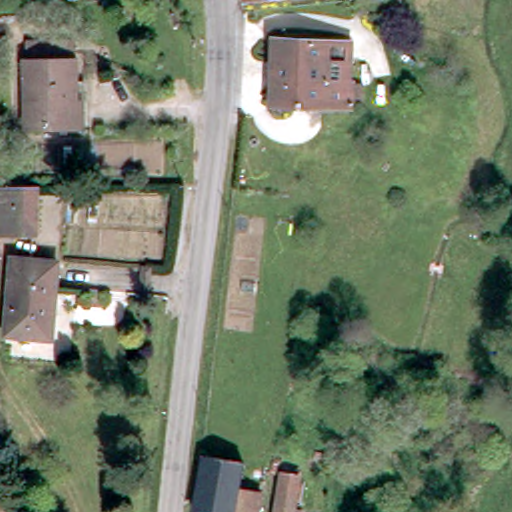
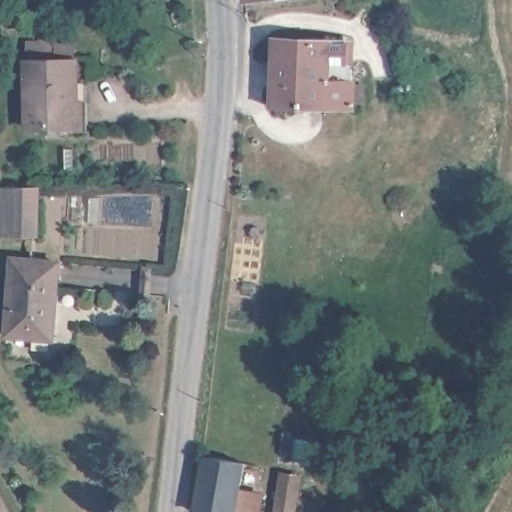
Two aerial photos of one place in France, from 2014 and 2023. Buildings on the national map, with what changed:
unchanged [(249,0),(244,1),(244,0),(249,0)]
unchanged [(350,43),(354,110),(273,107),(276,39),(350,43)]
unchanged [(81,85),(81,103),(82,127),(27,127),(26,64),(27,45),(75,44),(75,64),(75,85),(81,85)]
unchanged [(0,236),(0,188),(28,187),(26,236),(0,236)]
unchanged [(6,337),(11,260),(59,265),(53,341),(6,337)]
unchanged [(234,490),(256,495),(253,512),(194,512),(189,511),(200,455),(239,461),(234,490)]
unchanged [(299,476),(293,512),(277,512),(284,473),(299,476)]

